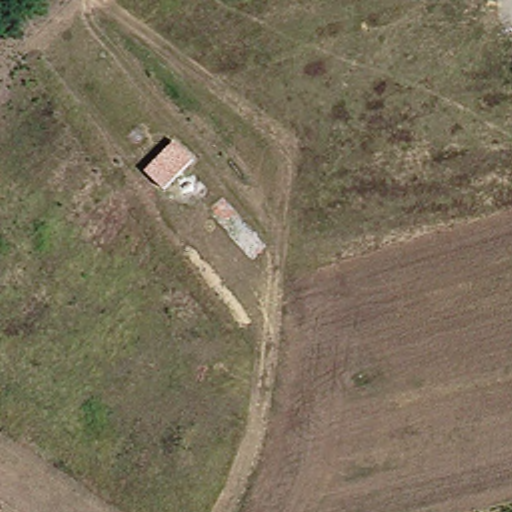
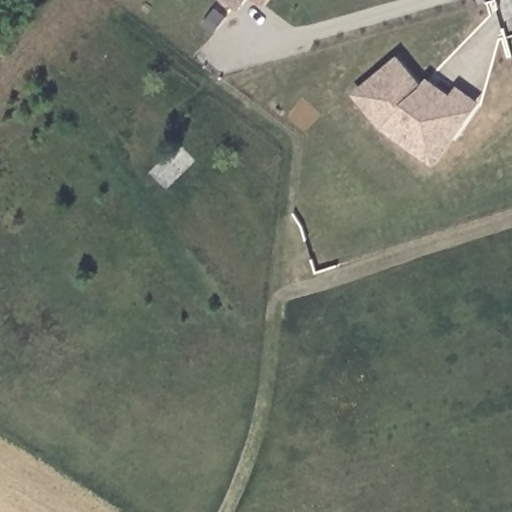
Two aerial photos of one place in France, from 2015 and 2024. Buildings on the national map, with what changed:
unchanged [(248,0),(241,9),(229,0),(248,0)]
new [(399,54),(423,83),(429,76),(452,93),(458,85),(482,101),(435,165),(382,128),(352,93),(399,54)]

